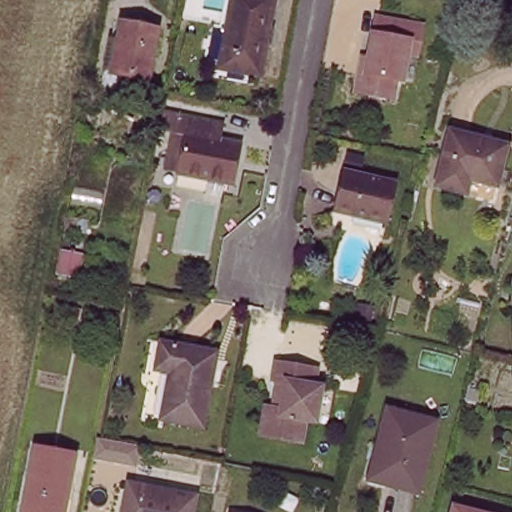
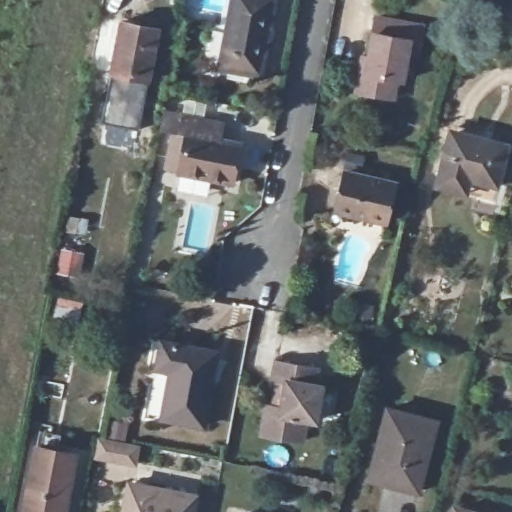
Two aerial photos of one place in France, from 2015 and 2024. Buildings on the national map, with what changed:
unchanged [(234,0),(274,0),(259,74),(222,67),(234,0)]
unchanged [(367,59),(375,17),(422,25),(417,54),(407,53),(403,80),(395,79),(392,97),(355,91),(358,71),(361,57),(367,59)]
unchanged [(115,40),(119,21),(155,28),(147,79),(110,71),(102,70),(108,38),(115,40)]
unchanged [(171,171),(180,129),(184,129),(186,117),(220,124),(218,139),(245,144),(237,184),(171,171)]
unchanged [(455,190),(435,185),(449,134),(470,139),(479,142),(480,137),(508,145),(498,185),(470,179),(466,192),(455,190)]
unchanged [(398,184),(388,224),(336,211),(345,171),(398,184)]
unchanged [(58,295),(64,296),(59,322),(44,318),(48,292),(58,295)]
unchanged [(168,371),(154,368),(159,340),(215,350),(202,426),(162,417),(168,371)]
unchanged [(274,407),(279,381),(267,378),(270,360),(311,367),(309,382),(315,383),(309,421),(298,420),(295,440),(255,432),(260,404),(274,407)]
unchanged [(368,480),(387,408),(436,421),(418,492),(370,480),(368,480)]
unchanged [(35,446),(73,453),(63,512),(22,512),(35,446)]
unchanged [(127,481),(195,494),(192,512),(122,512),(127,481)]
unchanged [(454,507),(475,512),(453,512),(454,507)]

